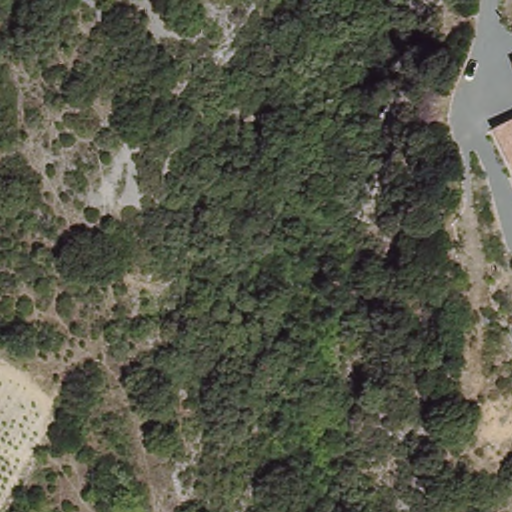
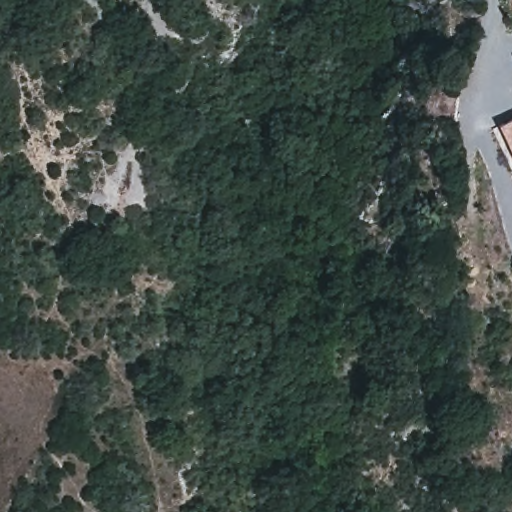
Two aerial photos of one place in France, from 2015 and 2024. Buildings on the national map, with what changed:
unchanged [(512,153),(499,126),(512,120),(512,153)]

